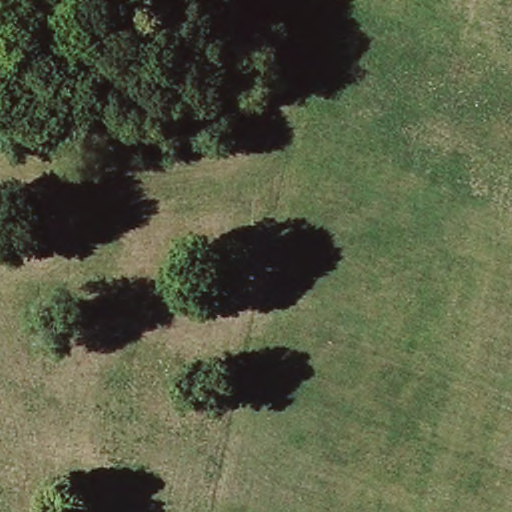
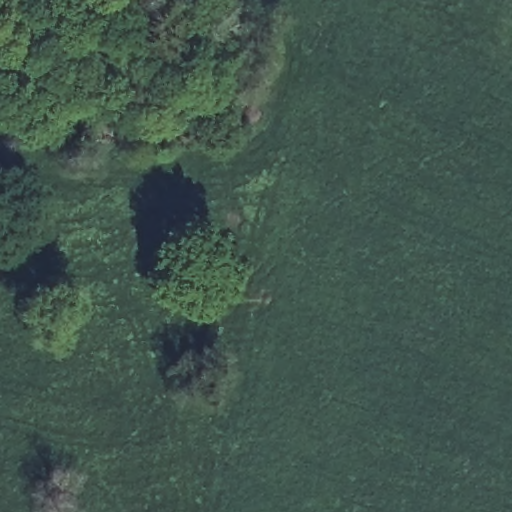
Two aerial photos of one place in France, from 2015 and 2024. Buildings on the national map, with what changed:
[]

